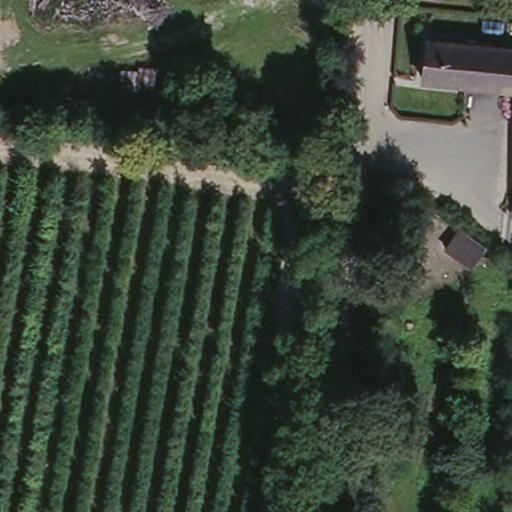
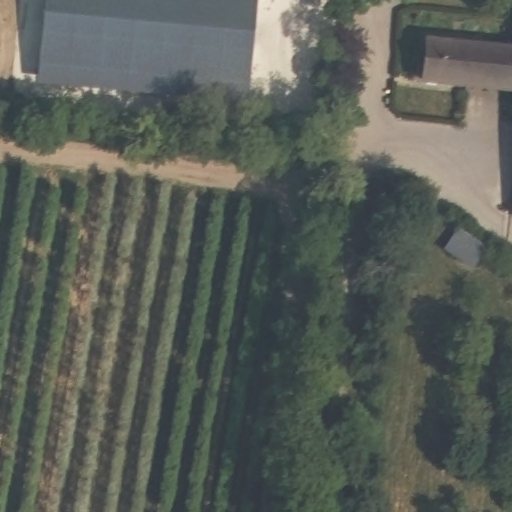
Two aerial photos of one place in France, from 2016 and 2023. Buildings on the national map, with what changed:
new [(234,114),(38,99),(43,0),(240,0),(234,114)]
unchanged [(421,37),(512,49),(512,89),(415,77),(421,37)]
unchanged [(512,198),(512,212),(510,212),(512,198)]

